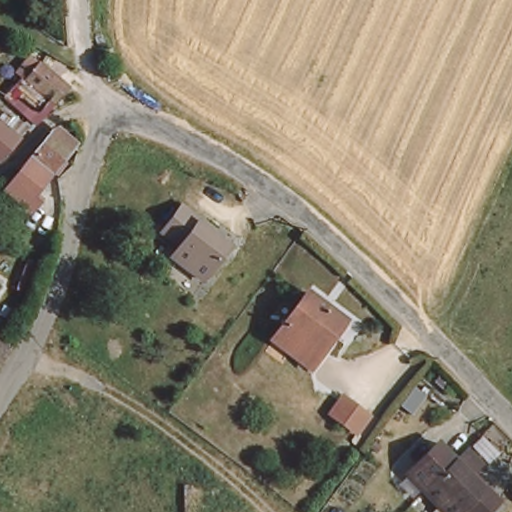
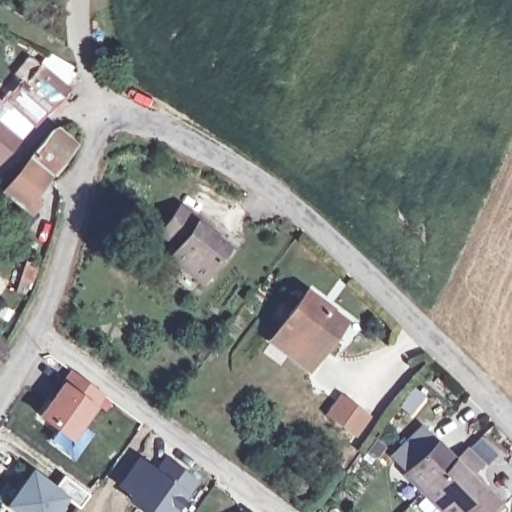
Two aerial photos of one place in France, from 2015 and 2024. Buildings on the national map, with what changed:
unchanged [(34,127),(3,107),(20,87),(33,73),(67,94),(55,106),(34,127)]
unchanged [(0,157),(0,124),(21,139),(2,159),(0,157)]
unchanged [(52,172),(32,197),(38,201),(32,210),(6,190),(33,156),(31,155),(53,130),(73,145),(52,172)]
unchanged [(180,247),(161,234),(184,205),(218,229),(215,233),(231,245),(206,280),(173,257),(180,247)]
unchanged [(345,322),(313,367),(275,342),(307,296),(345,322)]
unchanged [(0,348),(3,351),(10,357),(0,374),(0,348)]
new [(37,416),(62,380),(60,378),(70,368),(104,397),(94,407),(71,441),(37,416)]
unchanged [(363,413),(353,426),(331,409),(340,397),(363,413)]
unchanged [(481,466),(472,476),(500,503),(491,512),(442,512),(422,492),(407,477),(421,462),(437,447),(452,460),(463,448),(481,466)]
new [(116,486),(138,455),(155,467),(164,455),(200,481),(190,495),(177,512),(142,512),(127,502),(130,497),(116,486)]
new [(32,470),(67,497),(56,512),(15,512),(5,505),(32,470)]

